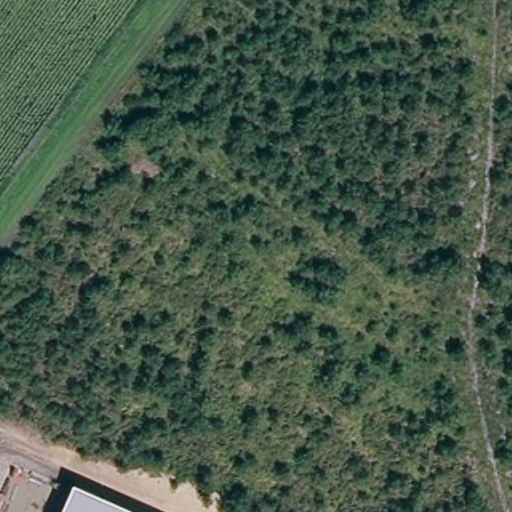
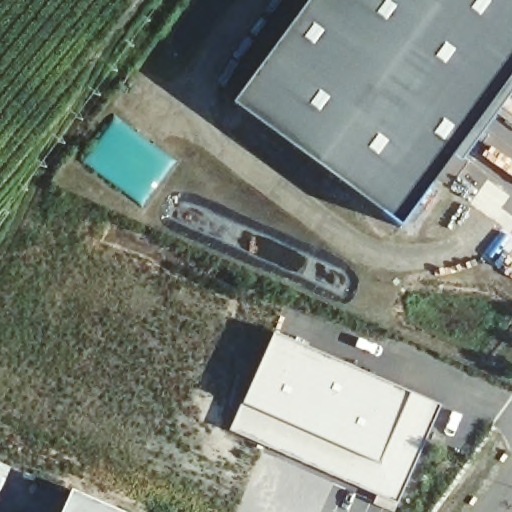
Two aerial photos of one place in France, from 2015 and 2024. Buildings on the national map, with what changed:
new [(512,0),(512,75),(402,224),(234,103),(310,0),(512,0)]
new [(398,501),(232,428),(274,333),(442,405),(398,501)]
unchanged [(123,512),(59,512),(69,488),(123,512)]

